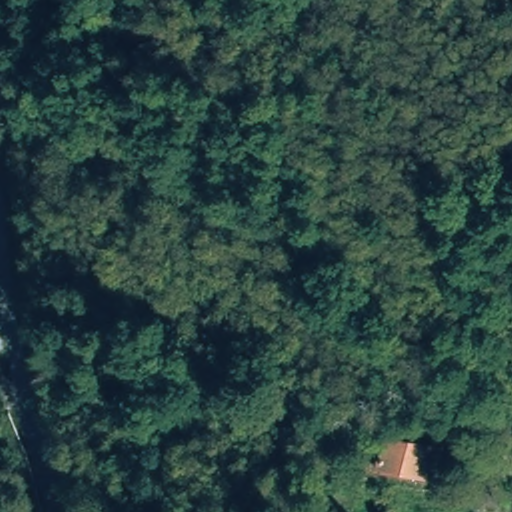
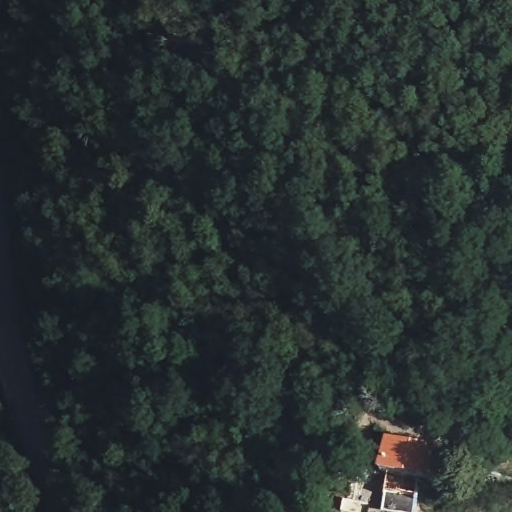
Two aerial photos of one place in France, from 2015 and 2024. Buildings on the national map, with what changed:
unchanged [(389,437),(433,446),(428,485),(383,473),(389,437)]

